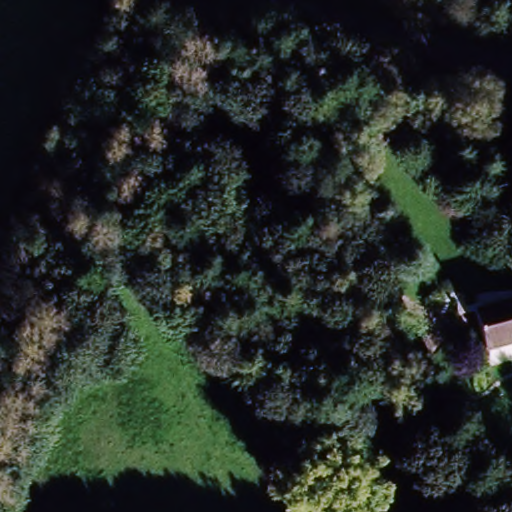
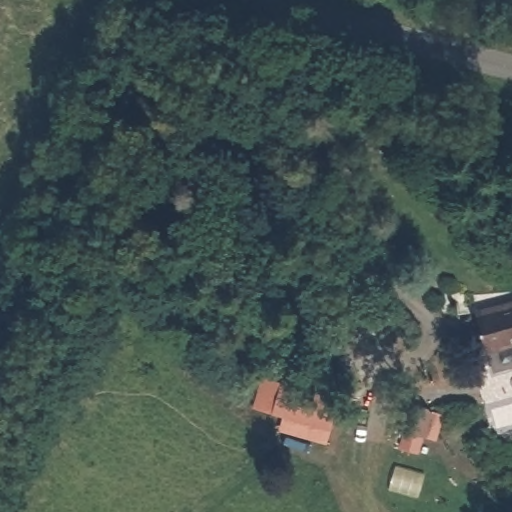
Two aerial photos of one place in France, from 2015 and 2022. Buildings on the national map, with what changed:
unchanged [(512,300),(512,345),(486,352),(473,312),(512,300)]
new [(264,375),(341,398),(327,445),(279,431),(283,417),(252,408),(264,375)]
unchanged [(435,438),(416,428),(409,424),(421,403),(428,407),(447,416),(435,438)]

